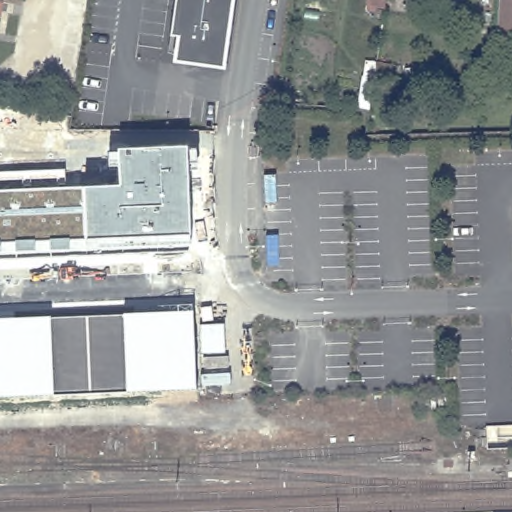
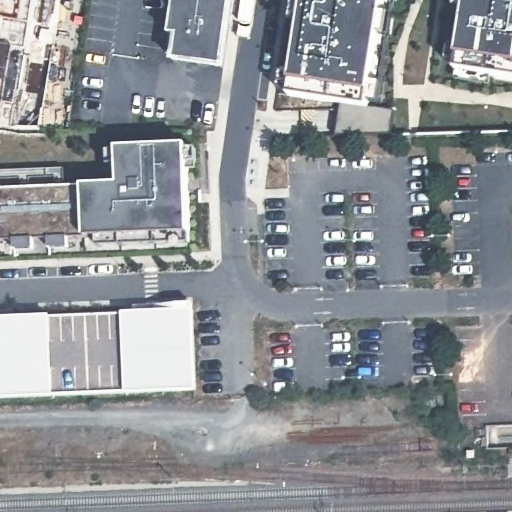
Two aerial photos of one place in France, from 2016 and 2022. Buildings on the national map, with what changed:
unchanged [(1,0),(0,4),(0,0),(1,0)]
unchanged [(177,60),(181,35),(173,34),(178,0),(189,0),(184,35),(230,42),(227,67),(177,60)]
unchanged [(184,35),(189,0),(236,0),(230,42),(184,35)]
new [(386,0),(370,105),(397,110),(393,134),(367,134),(337,135),(342,102),(292,94),(292,90),(306,0),(386,0)]
demolished [(387,11),(377,10),(377,14),(370,13),(372,0),(389,0),(387,11)]
new [(468,0),(512,0),(512,78),(457,70),(468,0)]
demolished [(512,0),(512,38),(496,37),(499,0),(512,0)]
unchanged [(99,245),(99,236),(86,235),(68,236),(69,247),(51,249),(50,237),(34,239),(34,250),(16,250),(15,239),(0,240),(0,170),(64,169),(65,186),(84,186),(120,185),(117,147),(187,145),(187,150),(197,149),(199,160),(188,161),(190,232),(191,242),(99,245)]
unchanged [(0,396),(0,318),(122,313),(193,311),(197,388),(126,390),(0,396)]

